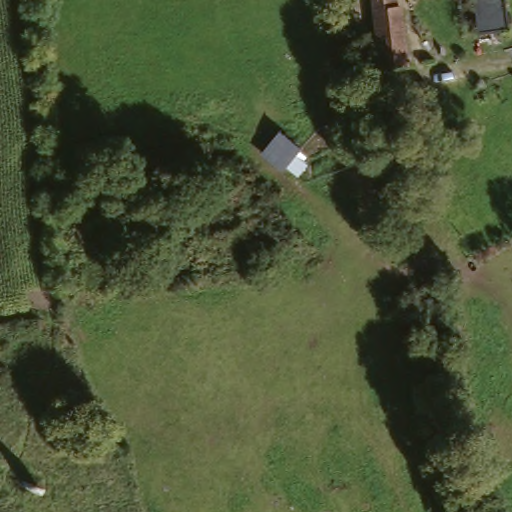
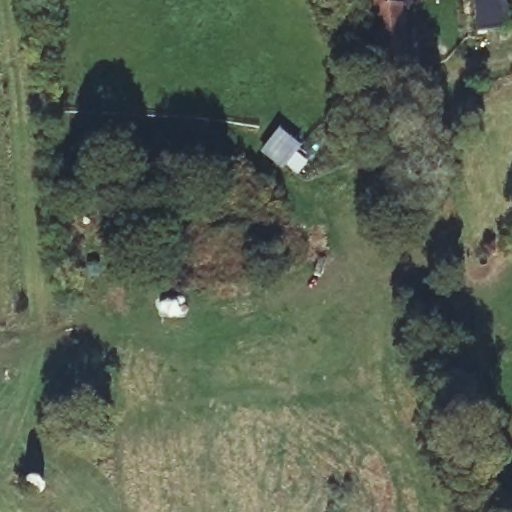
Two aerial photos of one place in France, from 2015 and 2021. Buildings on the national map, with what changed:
unchanged [(399,5),(409,63),(379,67),(368,0),(398,0),(399,5)]
unchanged [(474,1),(474,0),(485,0),(474,1)]
unchanged [(284,170),(261,154),(277,131),(301,149),(284,170)]

